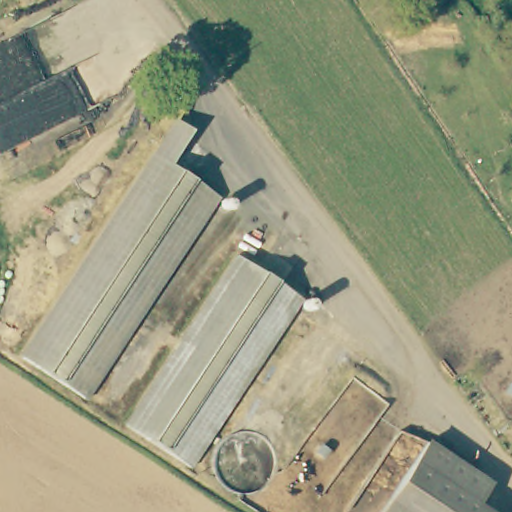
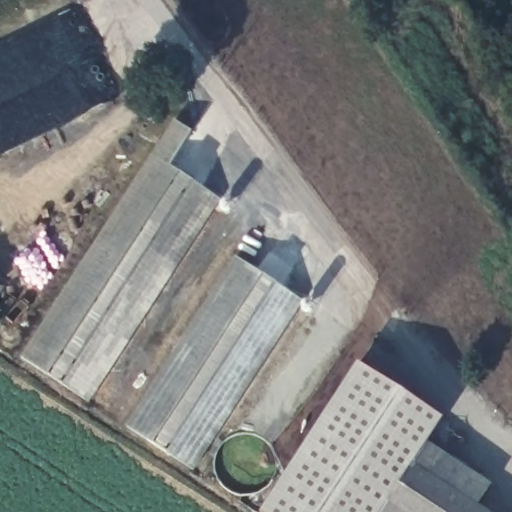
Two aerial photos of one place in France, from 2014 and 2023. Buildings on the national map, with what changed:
unchanged [(144,168),(146,170),(157,154),(178,124),(193,134),(170,167),(216,199),(209,210),(86,396),(84,399),(76,393),(20,357),(21,355),(144,168)]
unchanged [(237,262),(303,303),(193,472),(126,428),(237,262)]
new [(262,509),(359,364),(441,418),(429,437),(414,460),(380,512),(267,512),(262,509)]
unchanged [(429,437),(491,479),(476,500),(414,460),(429,437)]
unchanged [(414,460),(476,500),(495,512),(380,512),(414,460)]

